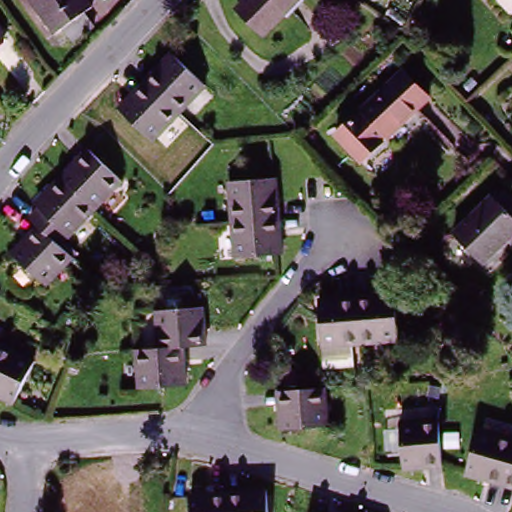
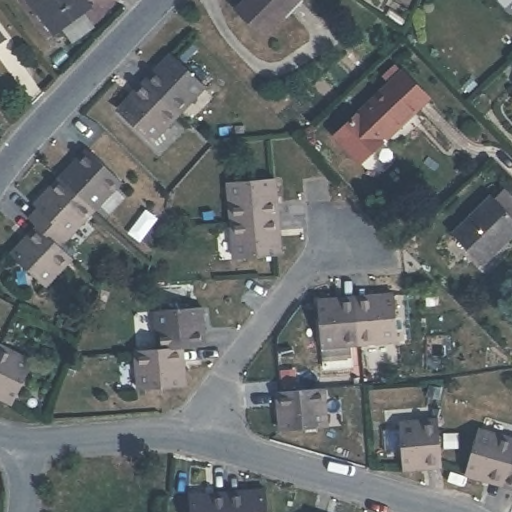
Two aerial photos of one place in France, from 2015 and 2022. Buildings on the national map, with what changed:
unchanged [(70,44),(62,30),(54,36),(29,0),(83,0),(89,8),(79,16),(88,30),(70,44)]
unchanged [(303,2),(269,44),(241,20),(256,0),(301,0),(303,2)]
unchanged [(176,50),(208,89),(178,119),(148,80),(176,50)]
unchanged [(433,97),(394,135),(392,132),(387,137),(389,140),(366,161),(341,132),(364,112),(366,114),(371,109),(369,107),(409,69),(433,97)]
unchanged [(178,119),(152,146),(120,109),(148,80),(178,119)]
unchanged [(93,144),(123,180),(94,210),(63,172),(93,144)]
unchanged [(94,210),(58,249),(38,225),(30,215),(39,206),(35,201),(63,172),(94,210)]
unchanged [(233,179),(278,175),(279,216),(234,219),(233,179)]
unchanged [(512,221),(512,235),(481,266),(453,237),(491,199),(512,221)]
unchanged [(279,216),(281,254),(235,257),(234,219),(279,216)]
unchanged [(58,249),(69,262),(40,291),(9,254),(38,225),(58,249)]
unchanged [(394,293),(394,339),(354,342),(353,296),(394,293)]
unchanged [(354,342),(317,345),(316,298),(353,296),(354,342)]
unchanged [(156,315),(201,311),(202,350),(180,352),(156,354),(156,315)]
unchanged [(180,352),(181,391),(134,395),(133,356),(156,354),(180,352)]
unchanged [(8,410),(0,405),(0,353),(31,369),(8,410)]
unchanged [(326,430),(281,433),(279,395),(324,390),(326,430)]
unchanged [(441,467),(401,468),(400,423),(439,421),(441,467)]
unchanged [(464,474),(479,430),(512,440),(512,445),(499,485),(464,474)]
unchanged [(512,445),(512,489),(499,485),(512,445)]
unchanged [(269,495),(269,512),(230,512),(230,497),(269,495)]
unchanged [(230,497),(230,512),(194,512),(194,500),(230,497)]

